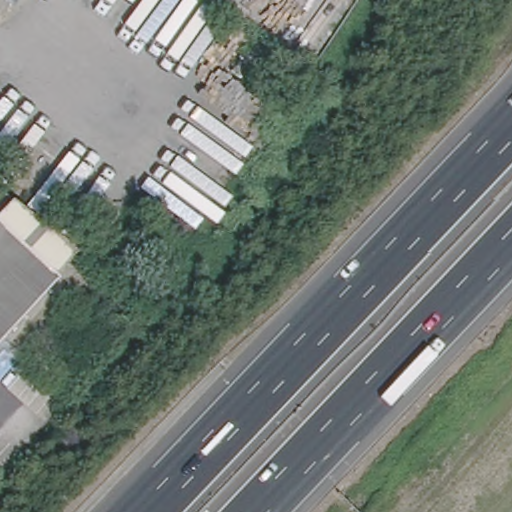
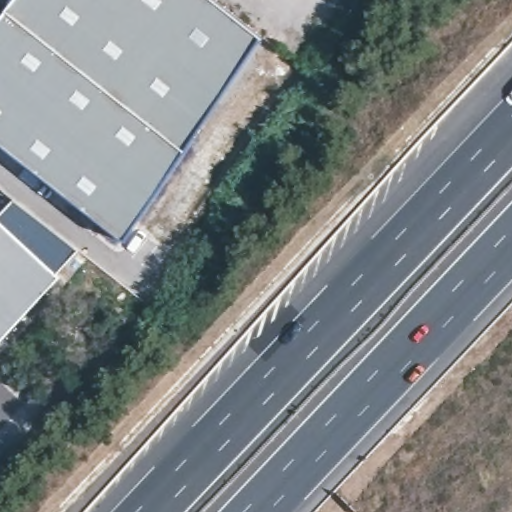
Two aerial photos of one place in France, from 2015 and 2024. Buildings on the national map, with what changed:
new [(0,145),(0,16),(9,3),(12,0),(215,0),(264,38),(123,242),(0,145)]
unchanged [(9,3),(6,0),(12,0),(9,3)]
unchanged [(51,279),(56,283),(0,345),(0,215),(10,204),(73,257),(51,279)]

